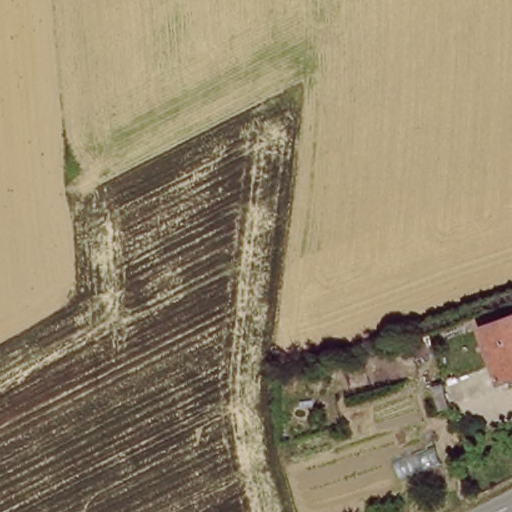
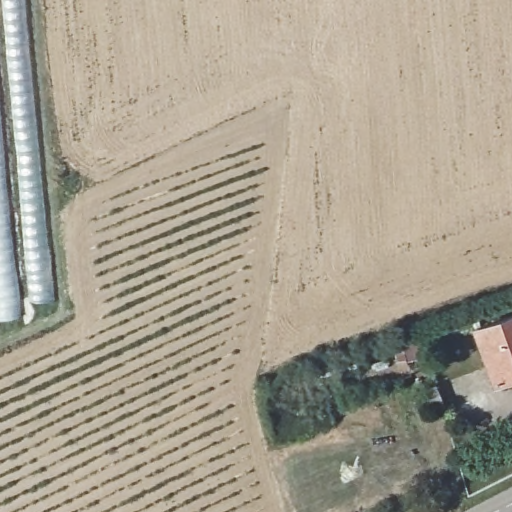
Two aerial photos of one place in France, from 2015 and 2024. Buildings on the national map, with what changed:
new [(19,305),(21,318),(0,319),(0,0),(25,0),(54,304),(19,305)]
unchanged [(477,327),(512,315),(512,379),(496,385),(477,327)]

